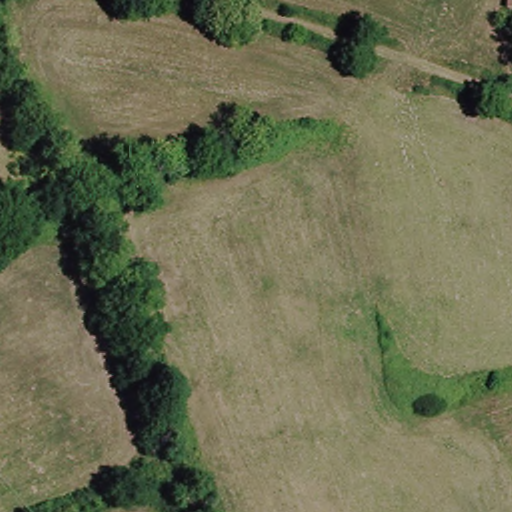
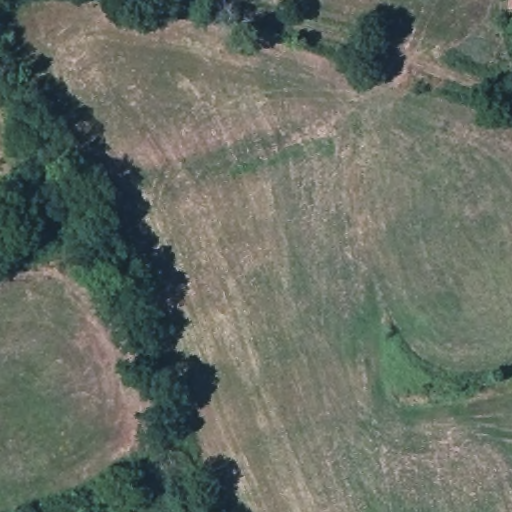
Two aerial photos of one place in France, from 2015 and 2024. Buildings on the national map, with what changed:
[]

